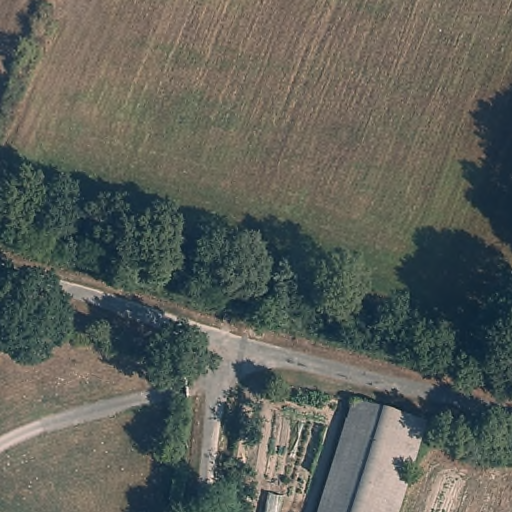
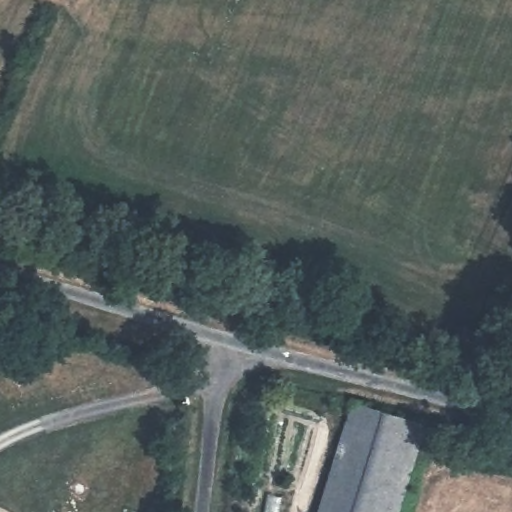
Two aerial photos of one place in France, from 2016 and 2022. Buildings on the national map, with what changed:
unchanged [(403,512),(319,512),(352,418),(343,416),(349,400),(359,404),(361,396),(413,418),(436,427),(415,482),(403,512)]

